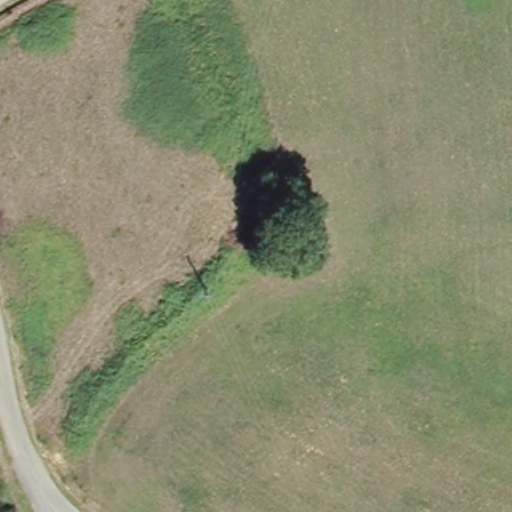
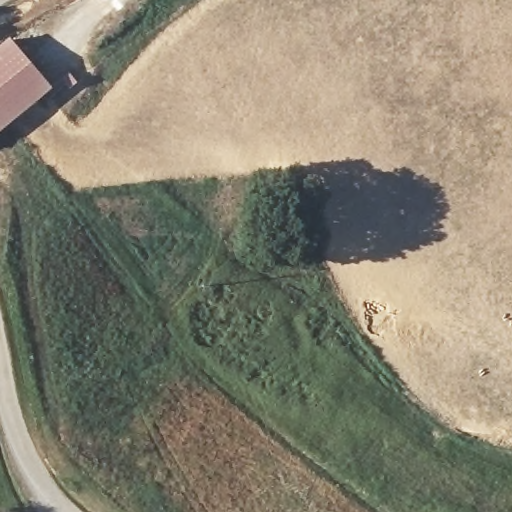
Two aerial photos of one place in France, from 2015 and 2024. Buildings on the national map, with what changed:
new [(12,38),(50,90),(0,132),(0,48),(12,38)]

